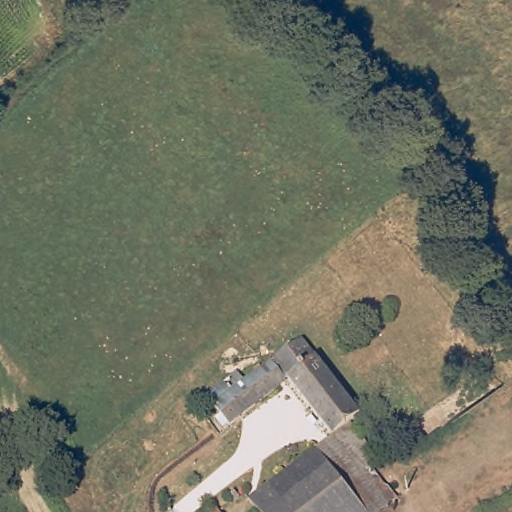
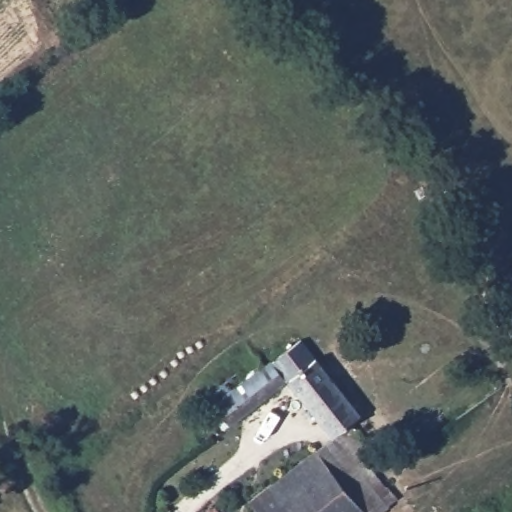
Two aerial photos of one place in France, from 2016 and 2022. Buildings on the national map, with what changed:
unchanged [(285,386),(228,430),(211,411),(217,406),(210,400),(239,376),(247,375),(253,382),(297,347),(357,421),(348,429),(331,443),(285,386)]
unchanged [(331,443),(348,429),(376,466),(367,473),(383,493),(392,487),(404,500),(388,512),(365,512),(371,506),(355,486),(345,490),(318,454),(331,443)]
unchanged [(345,490),(355,486),(371,506),(365,512),(254,512),(249,505),(318,454),(345,490)]
unchanged [(217,509),(220,512),(213,512),(217,509)]

